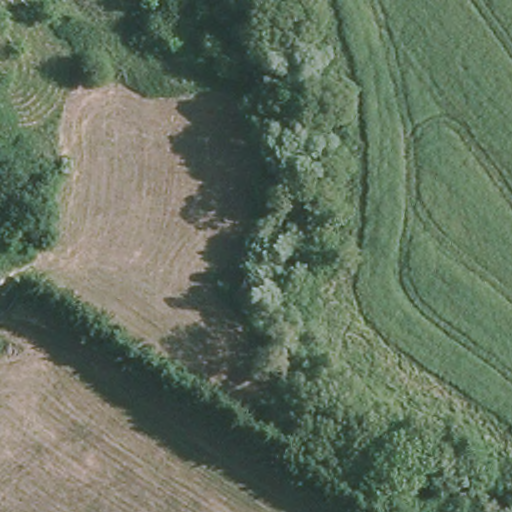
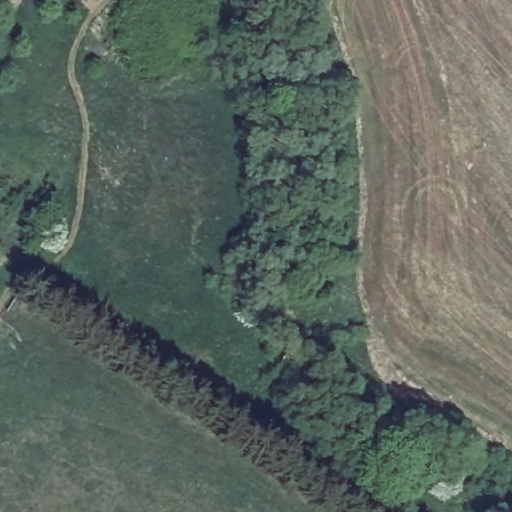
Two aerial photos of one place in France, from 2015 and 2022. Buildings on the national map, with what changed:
[]

